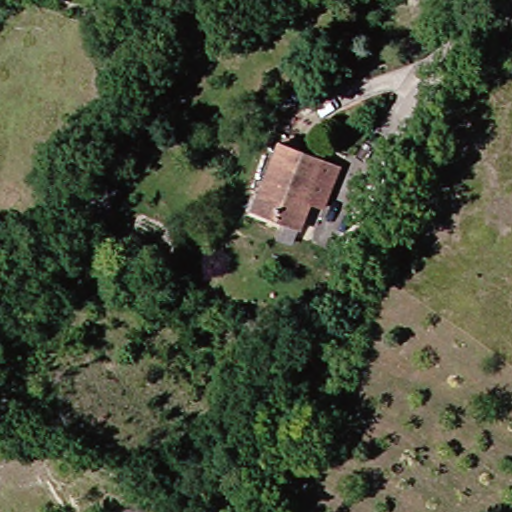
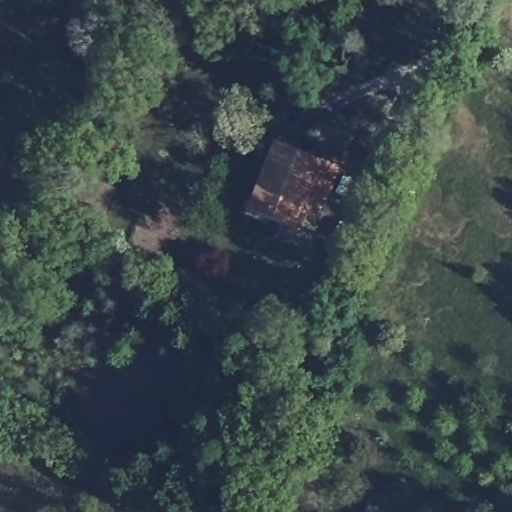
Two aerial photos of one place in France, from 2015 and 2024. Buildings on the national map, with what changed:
unchanged [(326,211),(317,208),(309,235),(258,217),(288,147),(332,163),(322,195),(331,198),(326,211)]

